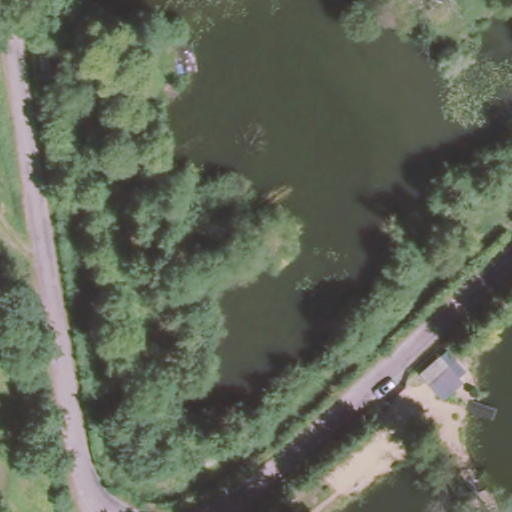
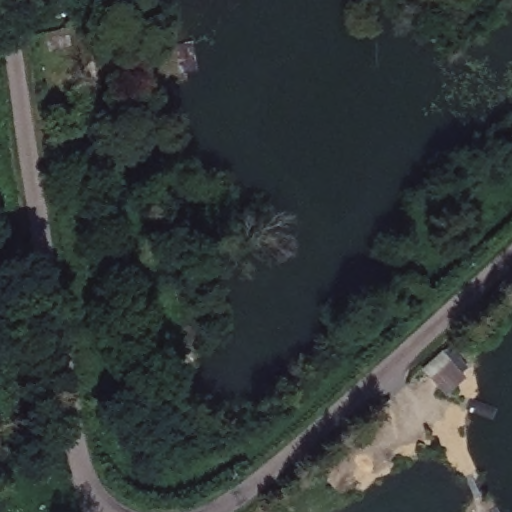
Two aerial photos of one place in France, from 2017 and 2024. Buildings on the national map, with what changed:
unchanged [(470,15),(457,23),(450,12),(463,4),(470,15)]
unchanged [(150,207),(140,224),(130,217),(140,200),(150,207)]
unchanged [(471,376),(443,399),(420,376),(447,349),(471,376)]

